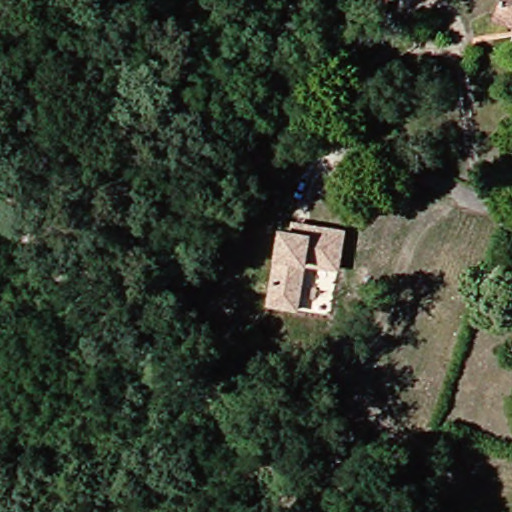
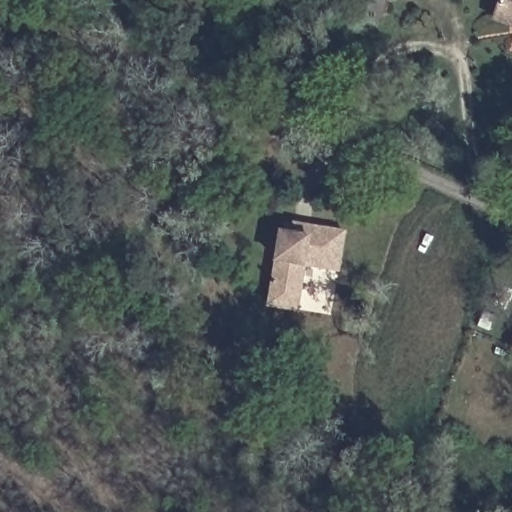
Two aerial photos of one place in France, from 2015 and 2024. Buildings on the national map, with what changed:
unchanged [(375,14),(378,0),(396,0),(391,20),(375,14)]
unchanged [(489,19),(495,0),(512,0),(512,26),(489,19)]
unchanged [(344,272),(311,267),(301,310),(275,305),(288,234),(299,234),(301,224),(316,227),(351,234),(344,272)]
unchanged [(507,348),(512,337),(512,350),(507,348)]

